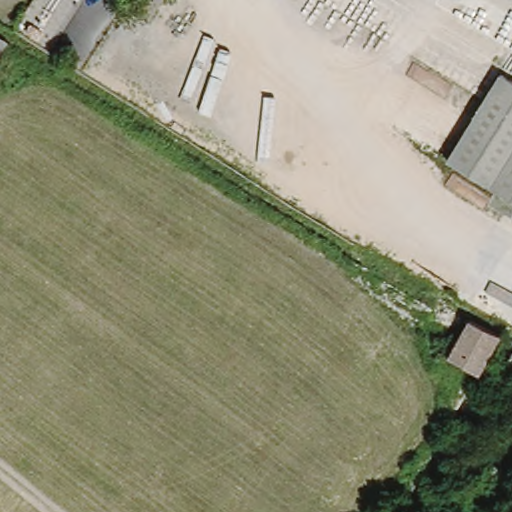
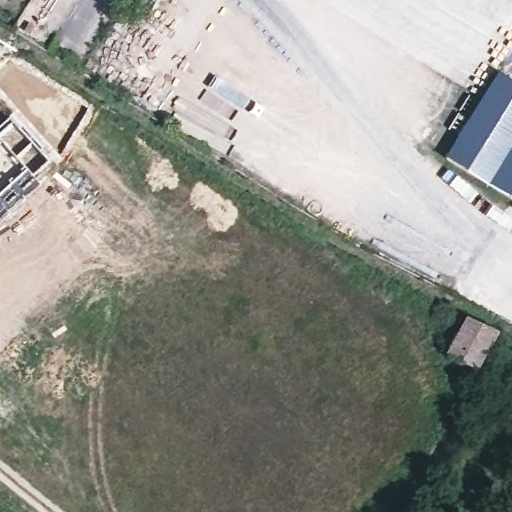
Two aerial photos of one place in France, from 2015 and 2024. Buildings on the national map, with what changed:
unchanged [(134,0),(161,0),(150,19),(130,7),(134,0)]
unchanged [(0,42),(2,44),(0,46),(0,42)]
unchanged [(440,156),(491,70),(512,83),(512,201),(440,156)]
new [(35,179),(41,185),(0,223),(0,128),(15,115),(54,161),(35,179)]
unchanged [(497,334),(476,369),(447,354),(469,319),(497,334)]

